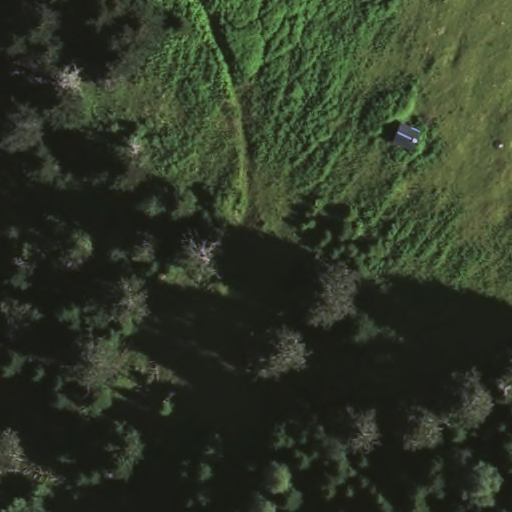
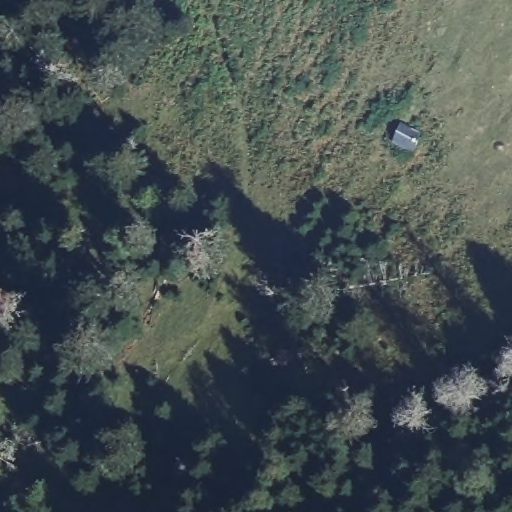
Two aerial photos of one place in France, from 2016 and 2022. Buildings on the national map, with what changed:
unchanged [(387,150),(394,131),(407,136),(421,141),(413,160),(387,150)]

